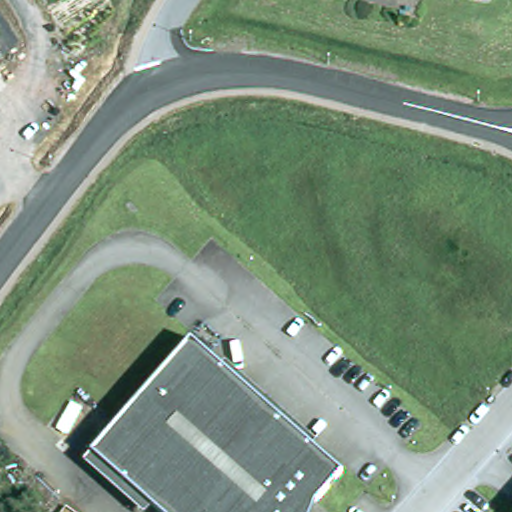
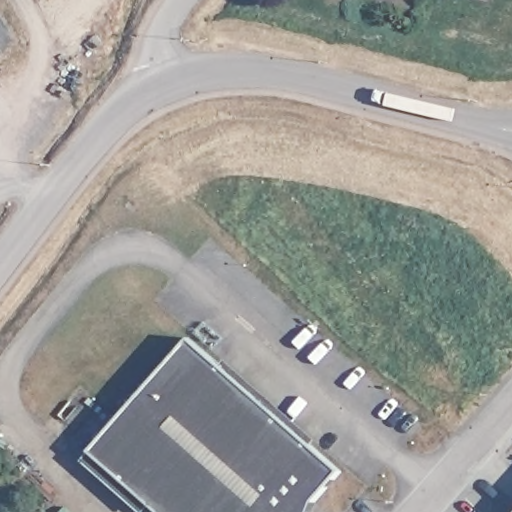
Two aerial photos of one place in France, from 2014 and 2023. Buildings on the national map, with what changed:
unchanged [(479,0),(498,0),(497,4),(479,0)]
unchanged [(0,65),(0,53),(5,61),(0,65)]
unchanged [(194,342),(347,476),(320,508),(318,512),(158,512),(96,457),(194,342)]

